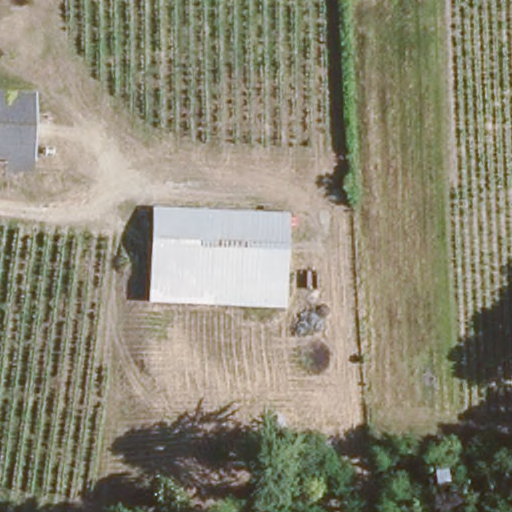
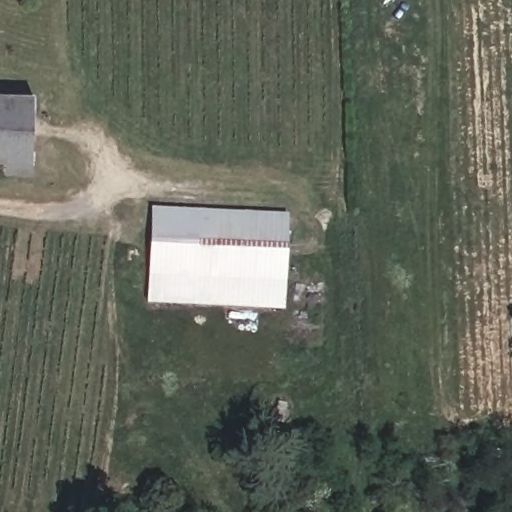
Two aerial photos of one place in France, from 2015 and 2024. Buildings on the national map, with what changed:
unchanged [(34,86),(31,151),(0,151),(0,86),(34,86)]
unchanged [(152,205),(282,206),(282,300),(151,300),(152,205)]

